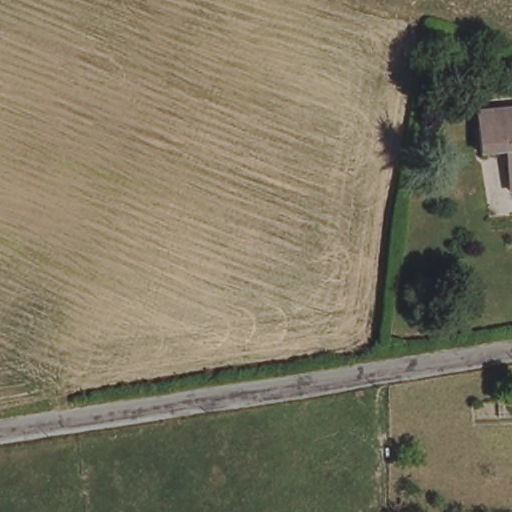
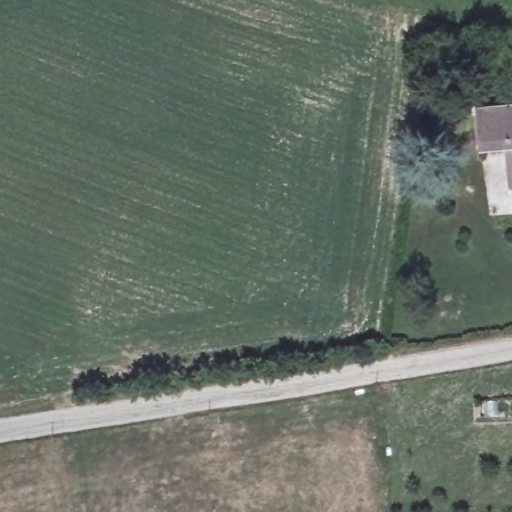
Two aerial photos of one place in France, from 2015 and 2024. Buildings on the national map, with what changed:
unchanged [(503,151),(478,154),(474,112),(512,109),(512,190),(507,190),(503,151)]

